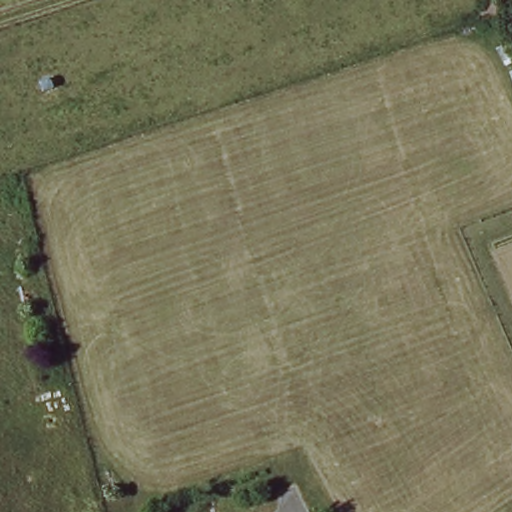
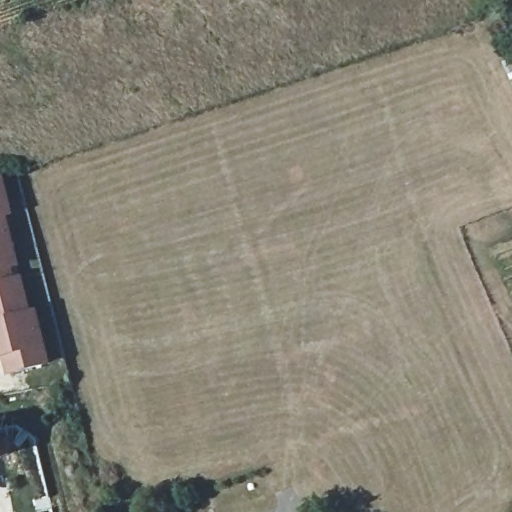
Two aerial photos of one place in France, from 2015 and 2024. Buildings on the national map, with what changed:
new [(15,215),(7,217),(20,268),(13,269),(16,279),(26,276),(35,310),(40,309),(54,367),(9,378),(2,359),(0,359),(0,178),(5,177),(15,215)]
new [(0,462),(0,429),(7,461),(0,462)]

